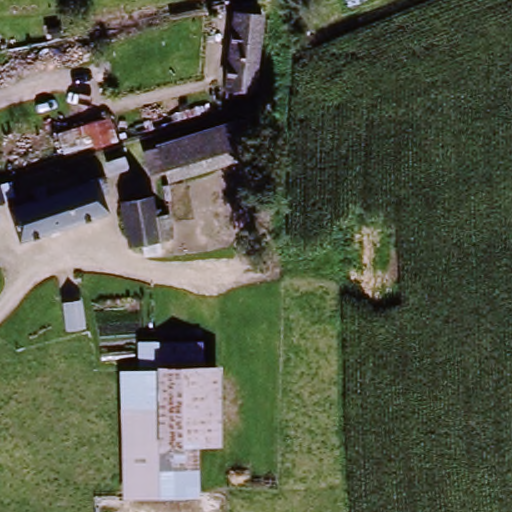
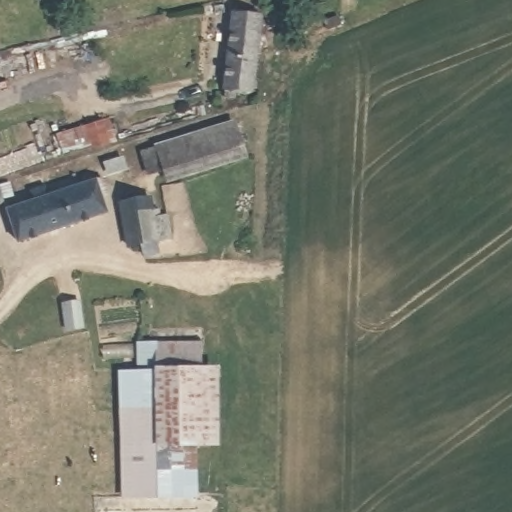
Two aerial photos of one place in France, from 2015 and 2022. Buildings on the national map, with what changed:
unchanged [(227,95),(230,0),(257,0),(252,86),(227,95)]
unchanged [(145,173),(139,151),(232,122),(244,156),(167,182),(163,168),(145,173)]
unchanged [(119,152),(124,163),(112,168),(108,157),(119,152)]
unchanged [(99,185),(110,216),(20,246),(10,216),(37,207),(34,195),(49,190),(52,200),(99,185)]
unchanged [(147,206),(150,213),(159,212),(160,222),(167,222),(170,245),(127,251),(122,209),(147,206)]
unchanged [(64,304),(80,302),(82,330),(65,331),(64,304)]
unchanged [(219,449),(190,451),(158,451),(156,375),(217,368),(219,449)]
unchanged [(120,452),(118,376),(156,375),(158,451),(120,452)]
unchanged [(191,497),(120,499),(120,452),(158,451),(190,451),(191,497)]

